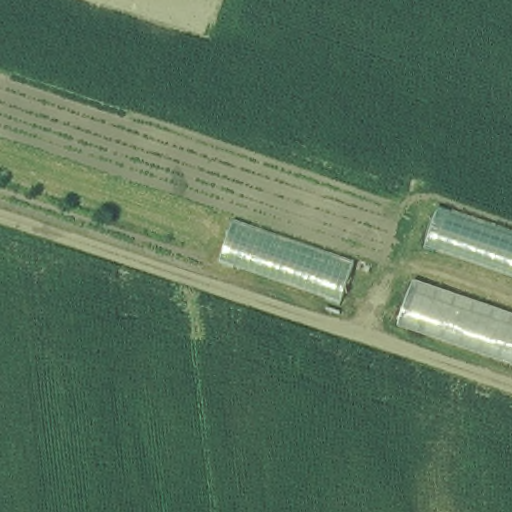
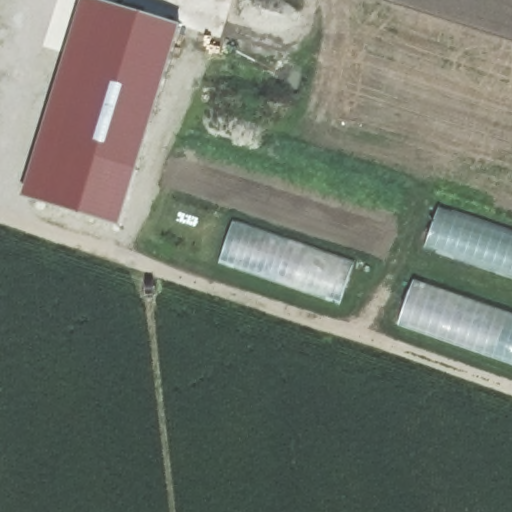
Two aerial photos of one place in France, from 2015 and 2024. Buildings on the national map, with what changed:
new [(116,225),(21,195),(78,0),(98,0),(176,24),(116,225)]
unchanged [(426,247),(439,207),(512,231),(512,277),(426,247)]
unchanged [(347,307),(222,270),(235,225),(359,266),(347,307)]
unchanged [(512,307),(512,360),(404,323),(422,277),(512,307)]

